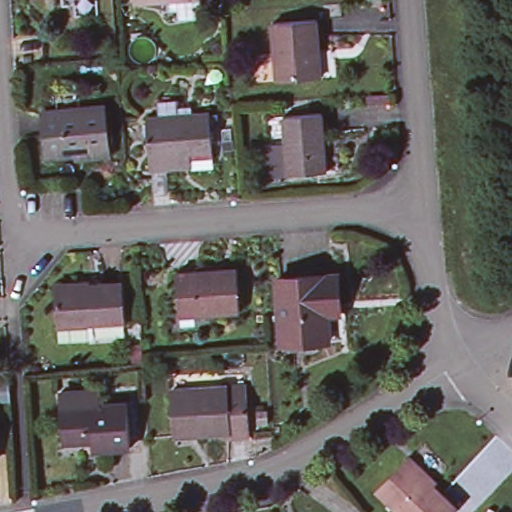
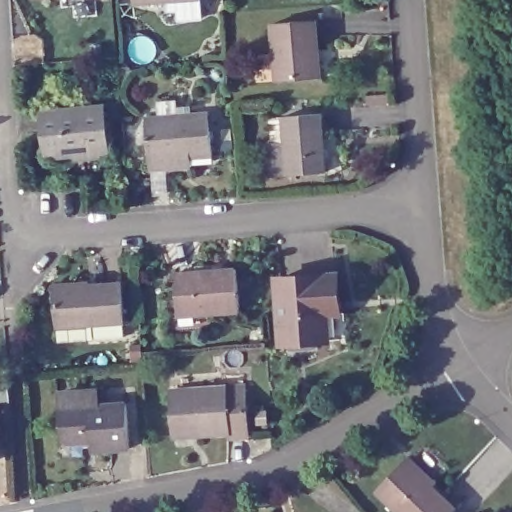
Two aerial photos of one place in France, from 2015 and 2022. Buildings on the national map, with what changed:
unchanged [(133,0),(171,0),(133,1),(133,0)]
unchanged [(311,78),(275,80),(273,53),(270,23),(315,20),(316,49),(318,77),(311,78)]
unchanged [(101,106),(105,154),(82,156),(82,148),(75,148),(75,152),(44,154),(40,111),(101,106)]
unchanged [(180,169),(147,170),(143,117),(207,113),(210,157),(190,158),(191,168),(180,169)]
unchanged [(282,116),(320,113),(325,172),(286,174),(266,175),(263,143),(284,142),(282,116)]
unchanged [(235,265),(238,309),(178,313),(175,269),(235,265)]
unchanged [(287,347),(287,341),(279,341),(273,276),(335,271),(337,295),(338,308),(322,309),(325,338),(309,339),(309,346),(287,347)]
unchanged [(86,336),(55,338),(55,324),(52,285),(119,279),(122,318),(122,333),(91,335),(90,329),(85,330),(86,336)]
unchanged [(172,433),(168,391),(218,387),(242,385),(247,438),(227,439),(226,434),(197,436),(173,439),(172,433)]
unchanged [(128,445),(92,448),(92,438),(62,441),(60,405),(58,393),(96,390),(97,401),(124,399),(128,445)]
unchanged [(407,456),(430,478),(427,481),(455,507),(450,512),(398,512),(375,489),(404,459),(407,456)]
unchanged [(499,511),(500,512),(498,512),(499,511)]

